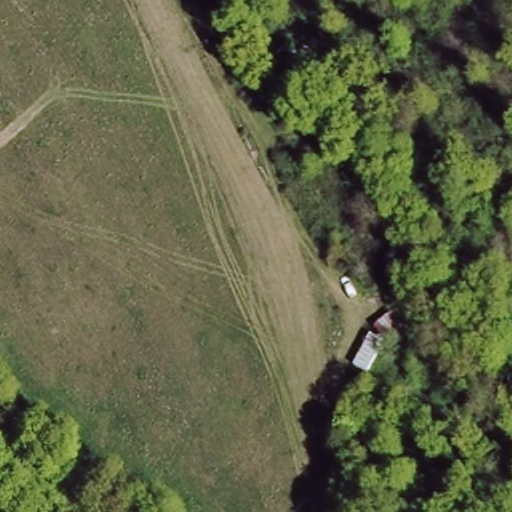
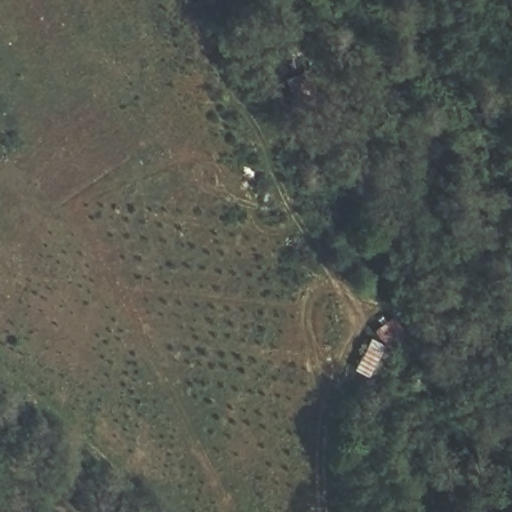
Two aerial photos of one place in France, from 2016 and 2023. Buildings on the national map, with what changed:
unchanged [(416,331),(391,349),(372,324),(397,307),(416,331)]
unchanged [(348,371),(366,338),(381,344),(371,380),(348,371)]

